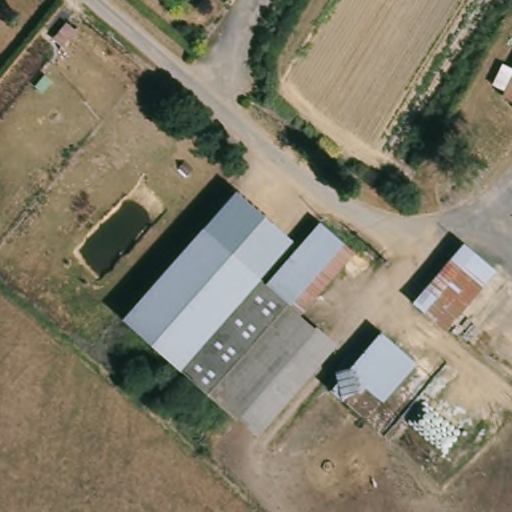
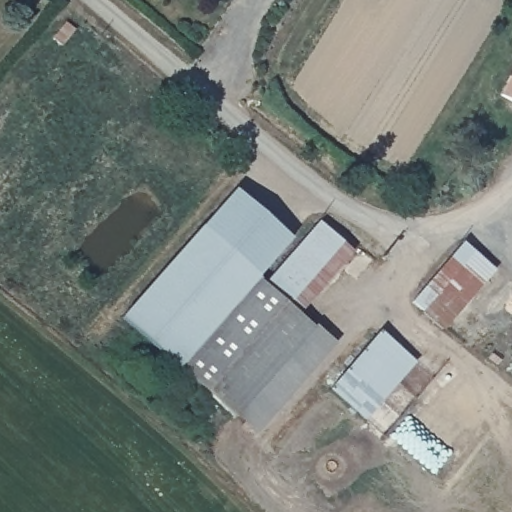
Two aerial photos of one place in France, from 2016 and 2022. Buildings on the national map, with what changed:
unchanged [(43,43),(70,12),(79,19),(52,51),(43,43)]
unchanged [(512,74),(512,96),(503,91),(512,74)]
unchanged [(206,222),(234,190),(293,237),(262,272),(206,222)]
unchanged [(269,278),(324,217),(346,236),(291,297),(304,309),(318,321),(238,411),(182,362),(262,272),(269,278)]
unchanged [(182,362),(125,313),(206,222),(262,272),(182,362)]
unchanged [(346,236),(357,246),(304,309),(291,297),(346,236)]
unchanged [(441,332),(412,303),(464,244),(496,271),(441,332)]
unchanged [(342,342),(262,431),(238,411),(318,321),(342,342)]
unchanged [(382,402),(361,385),(343,402),(330,390),(380,332),(417,362),(382,402)]

